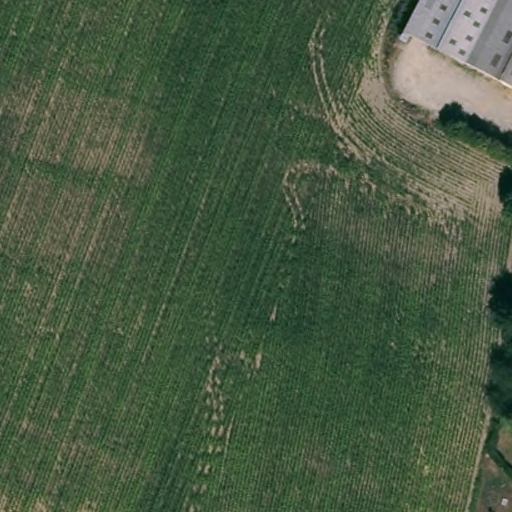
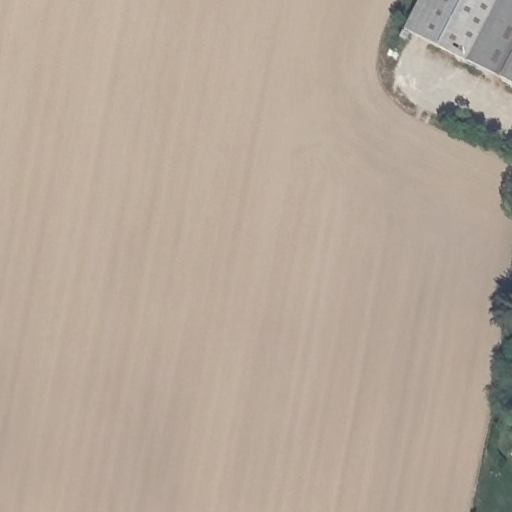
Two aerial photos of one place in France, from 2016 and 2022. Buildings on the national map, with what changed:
unchanged [(407,27),(421,0),(512,0),(512,78),(407,27)]

